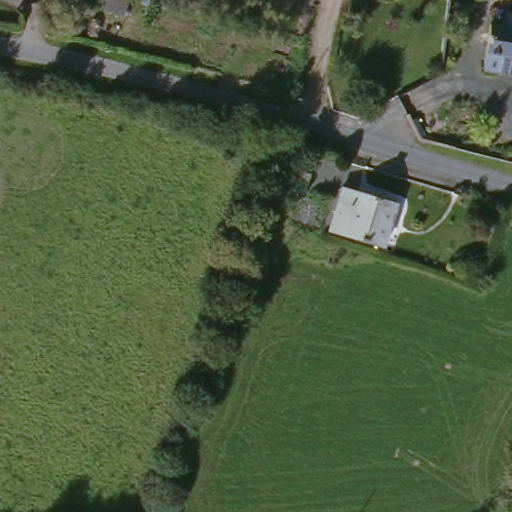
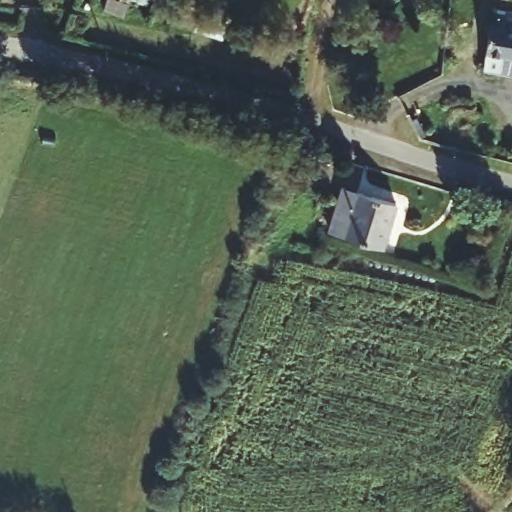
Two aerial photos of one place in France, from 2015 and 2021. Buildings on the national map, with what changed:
unchanged [(484,71),(492,25),(512,27),(512,60),(503,59),(501,75),(484,71)]
unchanged [(314,175),(308,191),(286,185),(291,167),(314,175)]
unchanged [(295,191),(286,209),(272,205),(278,185),(295,191)]
unchanged [(397,204),(384,248),(331,231),(344,188),(397,204)]

